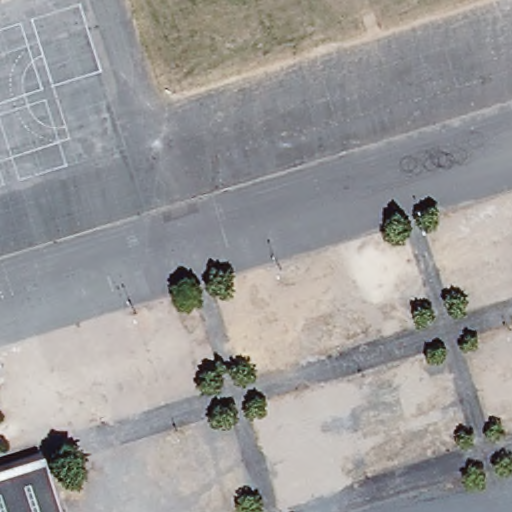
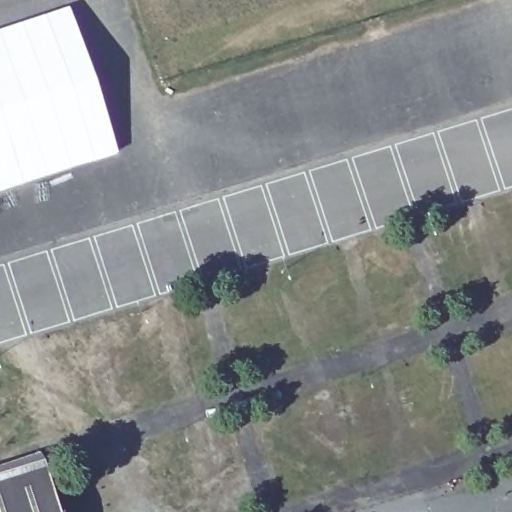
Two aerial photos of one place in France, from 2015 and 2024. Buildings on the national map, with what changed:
new [(68,5),(118,152),(0,191),(0,27),(68,5)]
unchanged [(0,488),(0,465),(37,454),(44,476),(0,488)]
unchanged [(56,512),(0,512),(0,488),(44,476),(56,512)]

